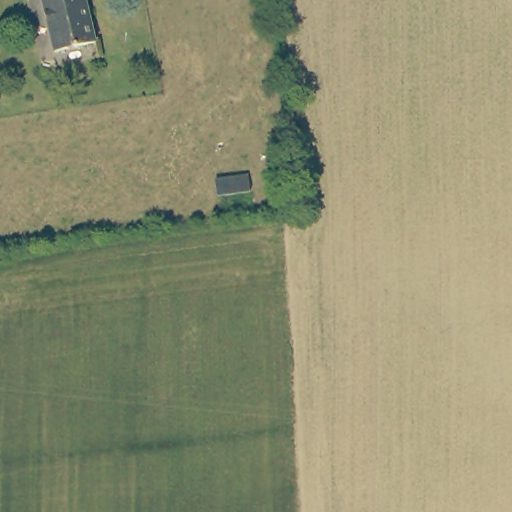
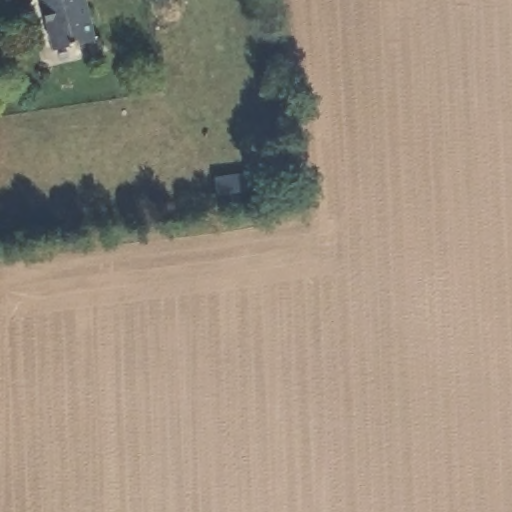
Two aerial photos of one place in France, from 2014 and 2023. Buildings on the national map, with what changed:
unchanged [(96,41),(52,54),(37,0),(84,0),(96,41)]
unchanged [(245,176),(248,196),(217,201),(215,180),(245,176)]

